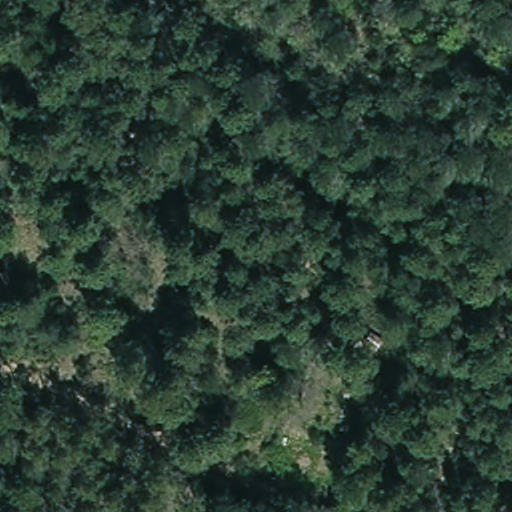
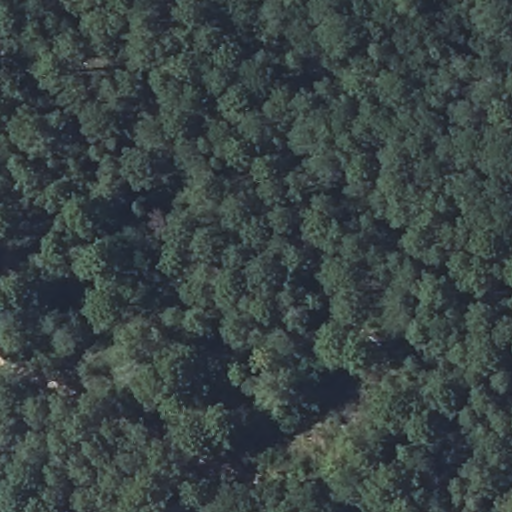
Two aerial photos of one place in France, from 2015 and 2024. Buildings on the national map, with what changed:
[]

